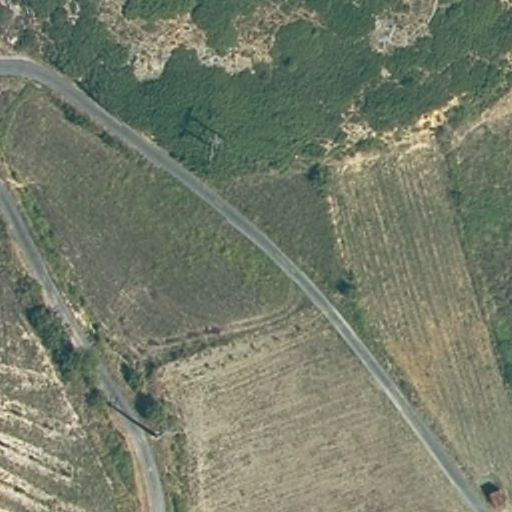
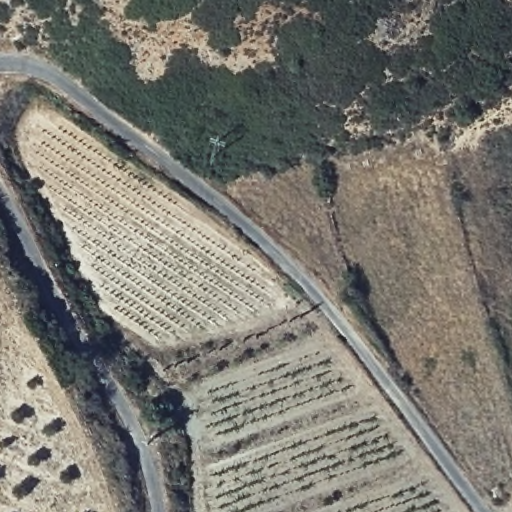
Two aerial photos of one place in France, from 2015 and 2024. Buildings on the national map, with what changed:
unchanged [(493,489),(504,486),(509,503),(498,506),(493,489)]

